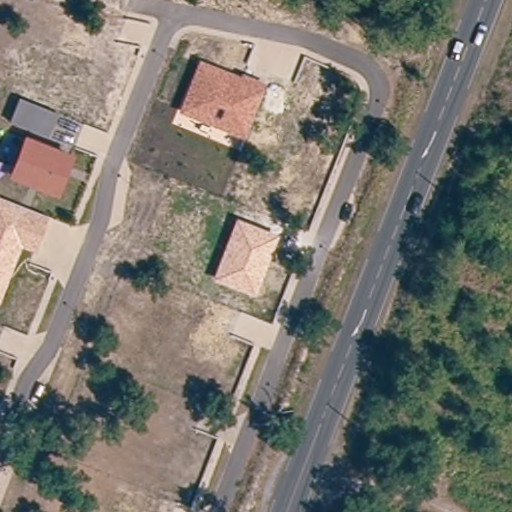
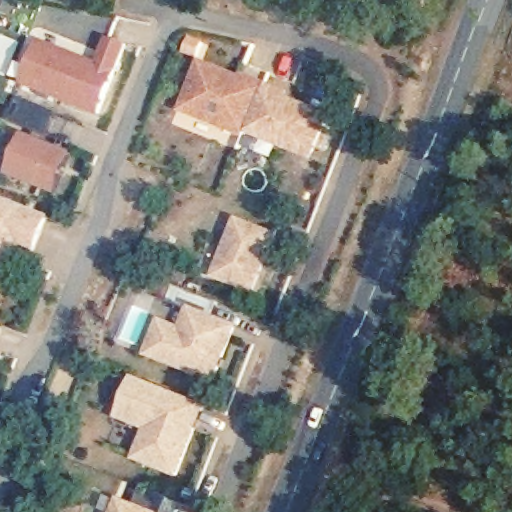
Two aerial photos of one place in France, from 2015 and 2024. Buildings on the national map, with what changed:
new [(45,46),(103,70),(113,45),(129,51),(102,116),(29,86),(45,46)]
unchanged [(242,76),(242,73),(267,83),(244,138),(179,113),(200,60),(242,76)]
new [(267,83),(292,93),(290,99),(332,115),(314,163),(246,134),(267,83)]
unchanged [(57,113),(48,138),(10,122),(19,98),(57,113)]
unchanged [(75,156),(60,198),(9,177),(26,135),(75,156)]
unchanged [(49,216),(36,253),(22,248),(0,303),(0,197),(49,216)]
unchanged [(280,235),(255,296),(212,279),(237,219),(280,235)]
new [(152,358),(165,326),(182,332),(187,333),(194,313),(173,305),(179,288),(222,305),(216,321),(239,330),(227,360),(223,369),(217,384),(179,368),(168,364),(152,358)]
new [(2,326),(0,329),(0,325),(2,326)]
new [(5,354),(0,367),(0,352),(5,354)]
new [(135,462),(145,433),(117,422),(134,377),(208,408),(180,482),(135,462)]
new [(118,500),(137,506),(144,490),(174,501),(169,512),(113,512),(118,500)]

